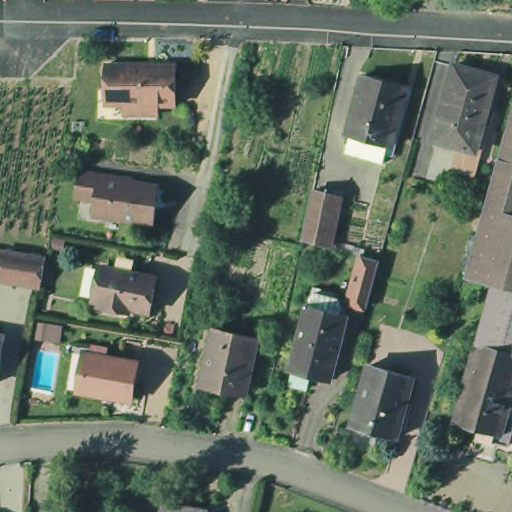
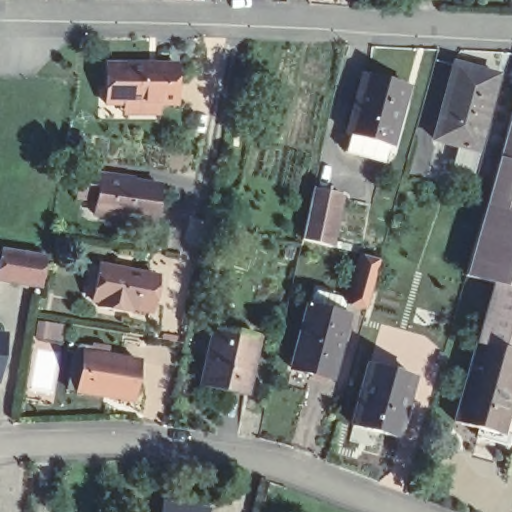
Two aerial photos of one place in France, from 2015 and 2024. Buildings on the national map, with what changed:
unchanged [(433,129),(450,71),(455,55),(495,67),(498,67),(493,84),(489,98),(497,100),(482,151),(472,149),(455,144),(457,136),(433,129)]
unchanged [(125,107),(126,97),(105,97),(106,58),(150,59),(178,60),(178,65),(177,99),(160,99),(160,108),(125,107)]
unchanged [(366,68),(387,74),(411,80),(405,103),(410,105),(396,152),(369,145),(349,139),(352,129),(366,68)]
unchanged [(512,125),(512,161),(502,159),(512,125)]
unchanged [(490,205),(495,188),(502,159),(512,161),(512,212),(490,205)]
unchanged [(158,221),(98,214),(100,198),(82,195),(86,170),(105,172),(104,175),(164,183),(158,221)]
unchanged [(336,246),(325,244),(307,239),(317,190),(337,195),(347,197),(336,246)]
unchanged [(497,282),(470,275),(490,205),(512,212),(512,287),(497,282)]
unchanged [(0,274),(0,255),(2,243),(46,251),(41,281),(0,274)]
unchanged [(369,299),(367,305),(347,300),(360,253),(380,258),(369,299)]
unchanged [(150,306),(138,305),(130,303),(130,307),(97,301),(98,296),(97,295),(103,259),(145,268),(157,270),(150,306)]
unchanged [(330,375),(307,369),(291,365),(306,302),(310,287),(311,281),(323,285),(322,291),(327,292),(337,295),(342,305),(341,311),(346,313),(330,375)]
unchanged [(480,344),(497,282),(512,287),(512,352),(480,344)]
unchanged [(259,332),(247,384),(222,378),(203,374),(215,322),(233,326),(259,332)]
unchanged [(0,375),(0,326),(10,328),(2,375),(0,375)]
unchanged [(482,435),(483,427),(460,421),(480,344),(512,352),(512,444),(482,435)]
unchanged [(117,393),(98,390),(75,386),(82,346),(124,353),(133,355),(128,390),(128,395),(117,393)]
unchanged [(378,432),(352,425),(368,364),(411,375),(413,376),(396,437),(393,436),(378,432)]
unchanged [(209,503),(214,504),(213,512),(167,512),(170,496),(209,503)]

